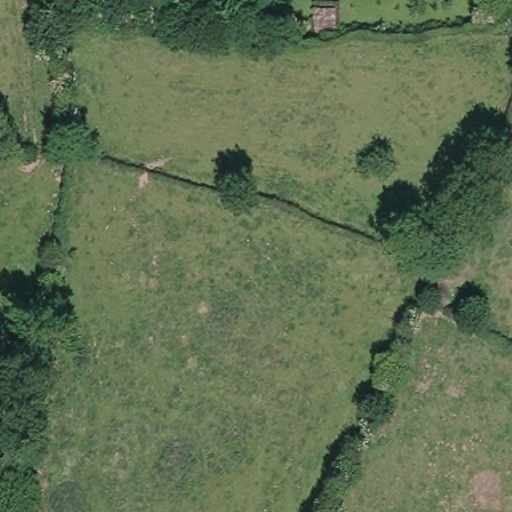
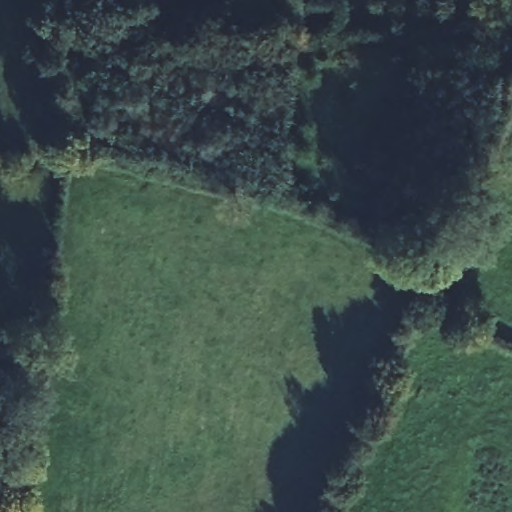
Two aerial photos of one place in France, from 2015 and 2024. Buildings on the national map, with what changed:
unchanged [(307,29),(306,7),(318,7),(323,6),(323,28),(307,29)]

